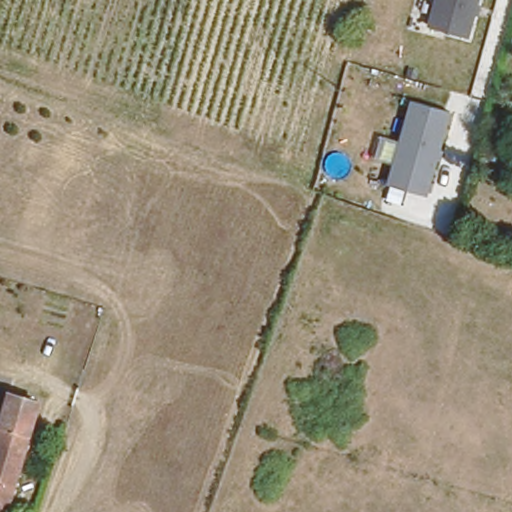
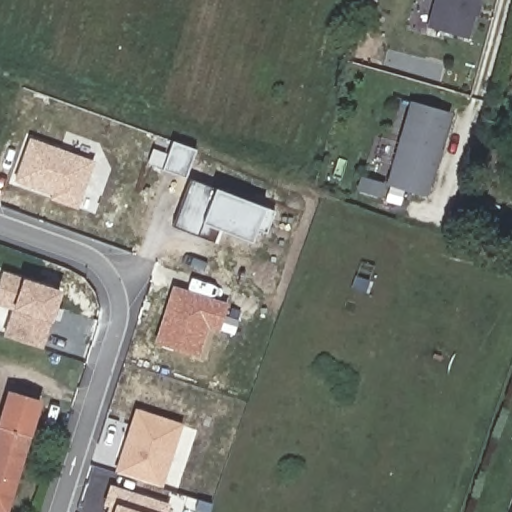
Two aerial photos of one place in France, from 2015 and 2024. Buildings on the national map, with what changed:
unchanged [(429,28),(437,0),(482,0),(471,39),(429,28)]
unchanged [(429,196),(388,185),(414,100),(452,111),(429,196)]
new [(77,208),(49,198),(50,194),(12,181),(29,137),(94,160),(77,208)]
unchanged [(496,161),(483,158),(487,147),(498,150),(496,161)]
new [(250,240),(217,228),(212,241),(171,226),(190,177),(213,187),(263,205),(273,210),(266,232),(255,228),(250,240)]
new [(50,321),(42,348),(2,335),(11,308),(0,305),(0,276),(2,270),(21,277),(61,289),(50,321)]
new [(204,358),(155,344),(172,287),(227,303),(219,332),(212,330),(204,358)]
unchanged [(1,407),(5,394),(35,403),(31,416),(3,512),(0,512),(0,409),(1,407)]
new [(162,486),(114,470),(134,407),(182,423),(162,486)]
new [(167,512),(106,512),(107,506),(102,505),(109,484),(170,503),(167,512)]
new [(512,508),(512,512),(510,512),(512,508)]

